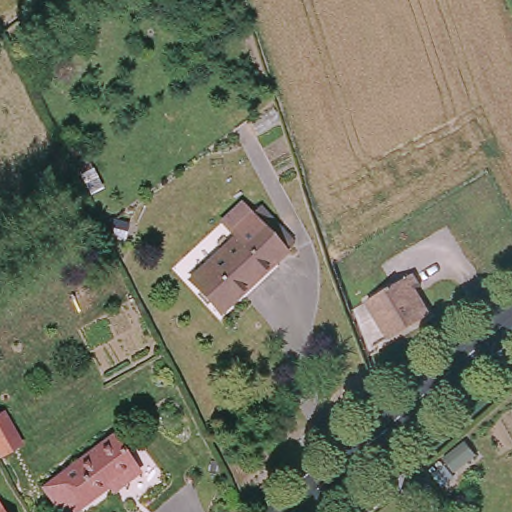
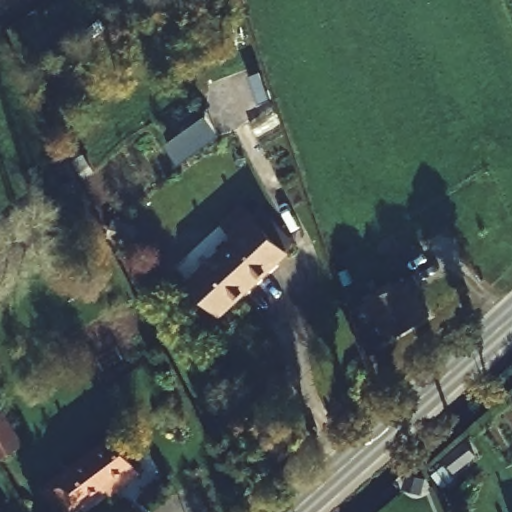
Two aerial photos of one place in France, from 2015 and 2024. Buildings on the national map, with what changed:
new [(179,165),(165,143),(207,114),(222,135),(179,165)]
unchanged [(189,280),(235,237),(230,231),(250,213),(286,251),(220,313),(189,280)]
unchanged [(413,273),(420,286),(414,290),(429,316),(390,339),(367,301),(413,273)]
unchanged [(0,456),(0,433),(10,451),(0,456)]
unchanged [(110,486),(74,512),(64,512),(44,486),(112,435),(140,472),(124,485),(114,492),(110,486)]
unchanged [(0,507),(3,512),(0,512),(0,507)]

